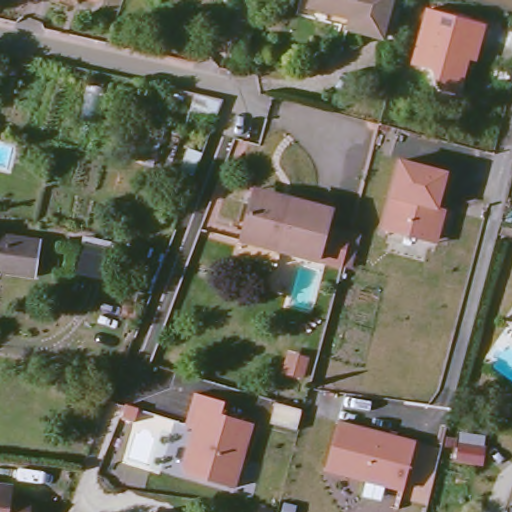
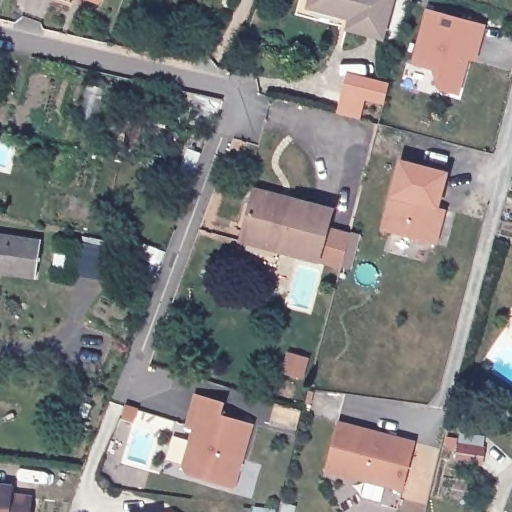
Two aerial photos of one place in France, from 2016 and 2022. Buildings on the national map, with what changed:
unchanged [(77,0),(81,0),(80,1),(77,0)]
unchanged [(310,0),(388,0),(380,30),(307,11),(310,0)]
unchanged [(426,8),(486,24),(476,62),(470,61),(462,95),(438,90),(431,70),(410,64),(426,8)]
new [(347,71),(388,83),(383,104),(365,99),(360,117),(337,111),(347,71)]
unchanged [(432,240),(385,228),(403,159),(450,171),(441,205),(447,207),(438,241),(432,240)]
unchanged [(279,239),(275,254),(237,246),(249,187),(290,196),(291,186),(330,197),(326,212),(353,219),(344,252),(279,239)]
unchanged [(43,240),(37,275),(0,270),(0,234),(43,240)]
unchanged [(230,405),(227,417),(259,427),(240,490),(195,477),(189,467),(194,450),(201,446),(205,433),(192,430),(202,397),(230,405)]
unchanged [(416,443),(403,490),(326,470),(339,422),(416,443)]
unchanged [(460,443),(460,435),(486,437),(485,446),(483,463),(458,460),(460,443)]
unchanged [(11,484),(10,493),(29,495),(27,512),(0,512),(0,483),(11,484)]

